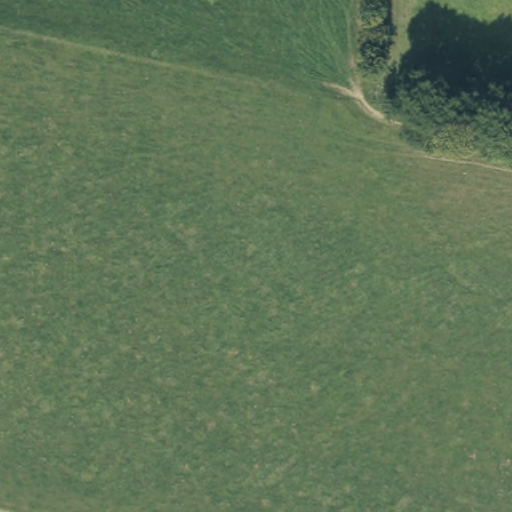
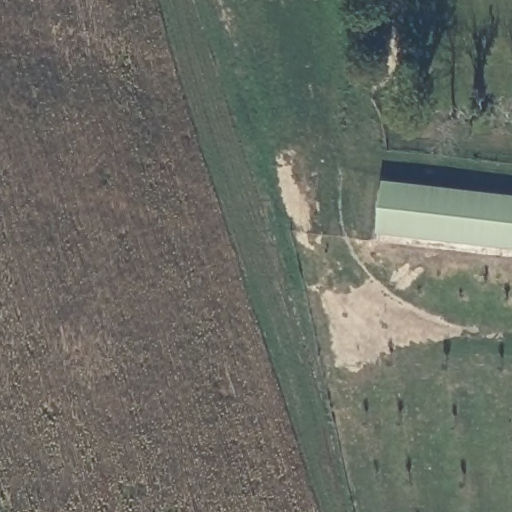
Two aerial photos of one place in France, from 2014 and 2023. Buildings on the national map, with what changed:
new [(378,232),(385,179),(512,193),(512,247),(378,232)]

